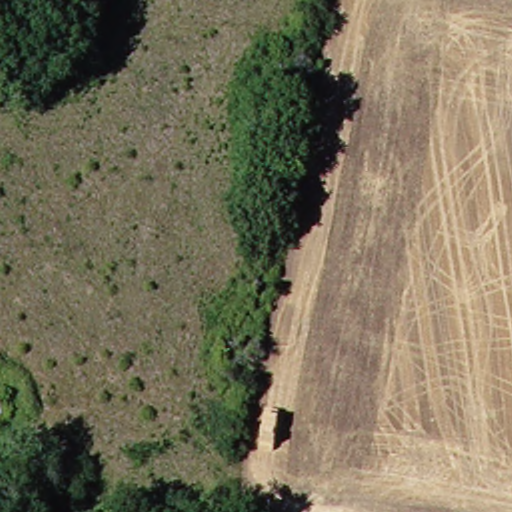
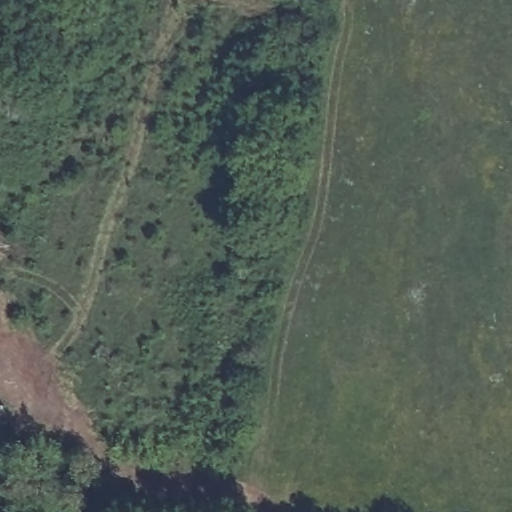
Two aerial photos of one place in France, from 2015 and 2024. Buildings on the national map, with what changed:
[]

